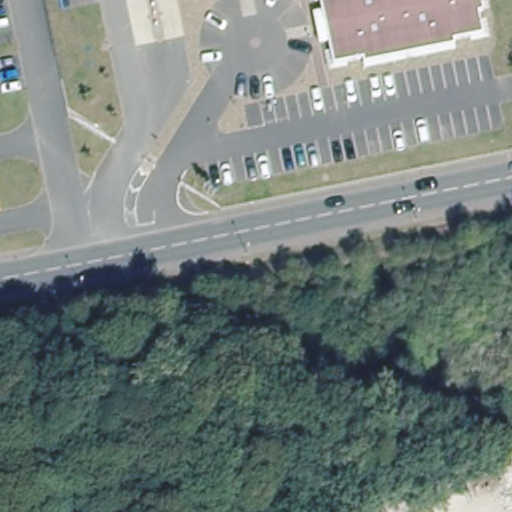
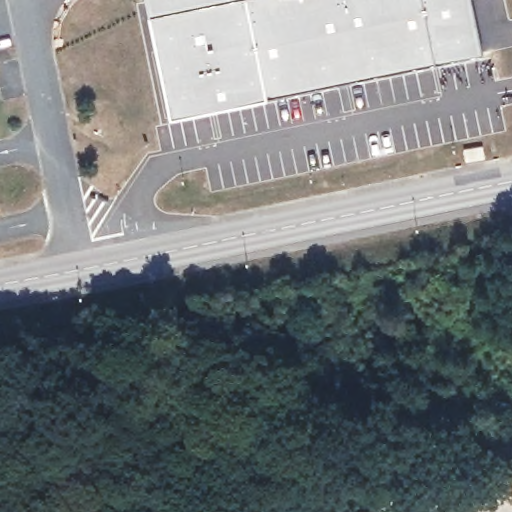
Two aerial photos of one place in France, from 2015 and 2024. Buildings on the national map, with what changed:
new [(266,94),(172,114),(150,9),(148,0),(471,0),(482,49),(266,94)]
demolished [(330,21),(326,0),(487,0),(490,19),(486,21),(489,44),(460,49),(461,55),(370,72),(370,69),(341,74),(336,50),(329,50),(323,23),(330,21)]

